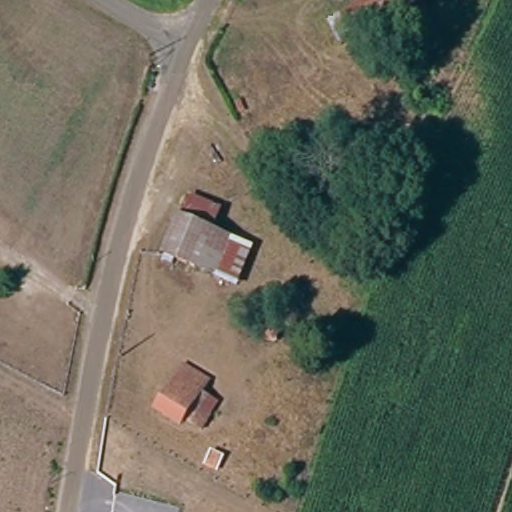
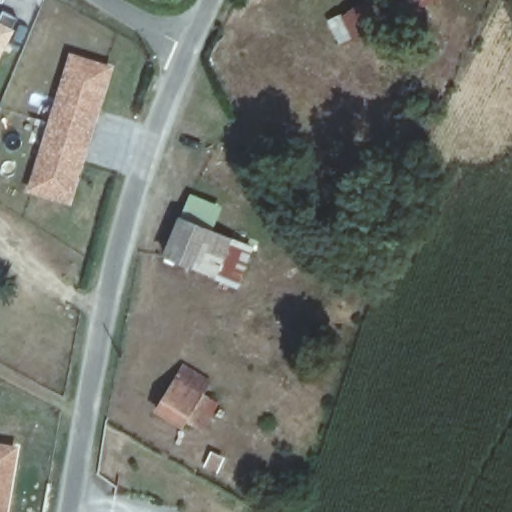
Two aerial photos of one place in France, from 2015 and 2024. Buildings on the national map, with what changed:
unchanged [(442,45),(421,56),(401,16),(384,24),(389,35),(370,44),(365,32),(341,45),(328,20),(369,0),(431,0),(421,5),(442,45)]
new [(3,11),(18,20),(0,55),(0,16),(3,11)]
new [(112,65),(69,202),(27,190),(70,52),(112,65)]
unchanged [(161,255),(176,215),(182,217),(191,197),(223,210),(216,232),(254,249),(238,289),(161,255)]
unchanged [(184,425),(182,431),(156,414),(183,363),(215,382),(205,397),(218,403),(204,430),(184,425)]
new [(15,448),(5,512),(0,512),(0,446),(15,448)]

